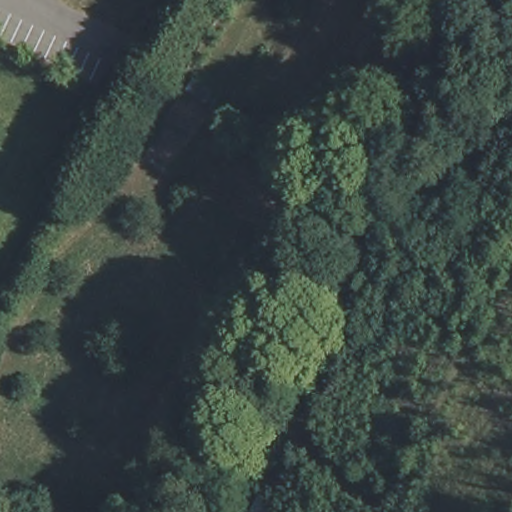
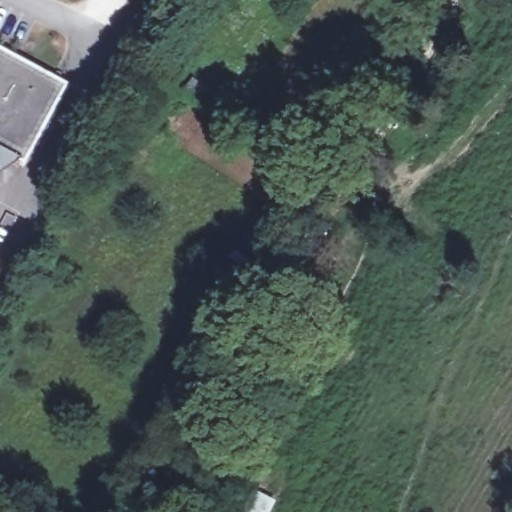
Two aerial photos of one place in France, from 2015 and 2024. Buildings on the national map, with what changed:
new [(24,160),(0,148),(0,47),(65,85),(24,160)]

